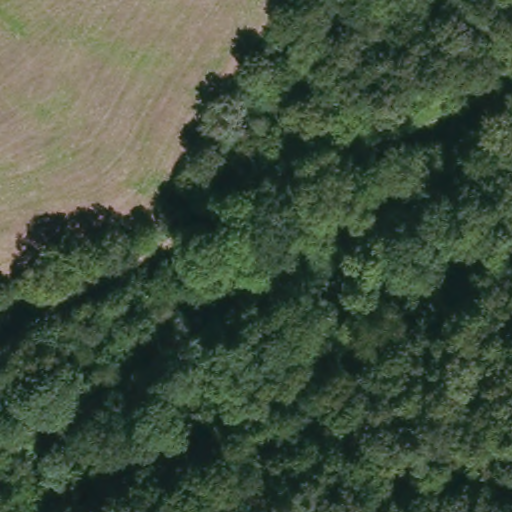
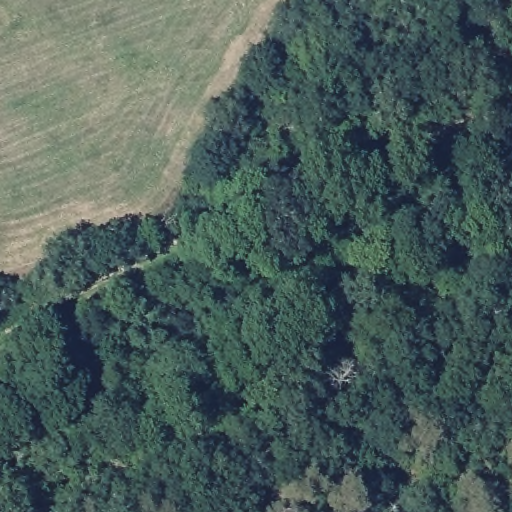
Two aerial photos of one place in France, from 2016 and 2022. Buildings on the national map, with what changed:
[]

